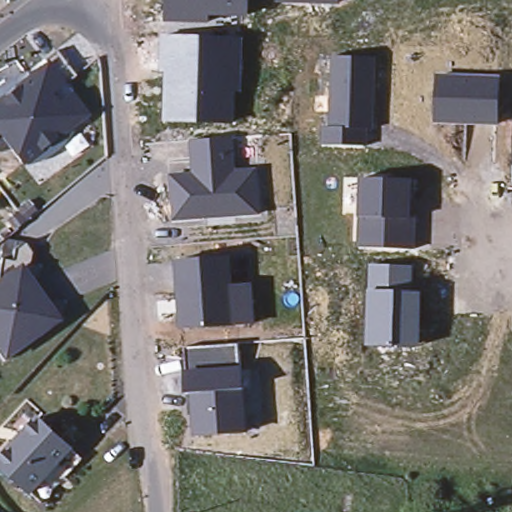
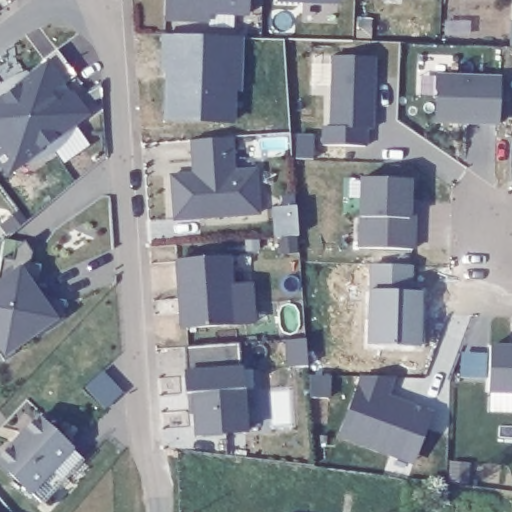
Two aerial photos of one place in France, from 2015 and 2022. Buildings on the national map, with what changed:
unchanged [(209,15),(208,24),(163,21),(165,0),(250,0),(249,17),(209,15)]
unchanged [(340,0),(340,5),(277,2),(277,0),(340,0)]
unchanged [(166,71),(158,71),(160,35),(244,38),(242,89),(242,94),(235,92),(234,124),(164,122),(166,71)]
unchanged [(19,74),(26,71),(29,75),(46,61),(43,58),(56,49),(75,75),(50,94),(55,102),(70,91),(87,114),(75,122),(72,130),(62,142),(54,150),(40,157),(23,162),(10,146),(7,149),(0,150),(0,85),(6,80),(19,74)]
unchanged [(322,126),(330,127),(332,56),(377,58),(374,130),(367,130),(367,147),(322,145),(322,126)]
unchanged [(435,121),(436,75),(500,76),(498,126),(435,121)]
unchanged [(170,174),(191,173),(188,141),(235,137),(237,169),(258,168),(261,215),(173,220),(170,174)]
unchanged [(357,245),(358,215),(360,179),(414,180),(412,219),(417,220),(415,250),(357,245)]
unchanged [(25,219),(14,227),(8,219),(18,210),(25,219)]
unchanged [(41,263),(37,285),(47,286),(45,295),(67,298),(63,317),(38,335),(37,335),(40,321),(32,320),(30,333),(20,332),(17,351),(5,360),(0,352),(0,334),(1,328),(0,328),(0,266),(2,257),(12,258),(14,248),(18,245),(25,238),(30,246),(32,251),(30,261),(41,263)]
unchanged [(175,262),(230,257),(233,280),(233,285),(253,284),(256,323),(232,324),(180,327),(175,262)]
unchanged [(369,291),(370,265),(414,266),(413,292),(422,293),(421,347),(367,346),(369,291)]
new [(487,394),(487,378),(460,377),(461,353),(488,353),(489,345),(510,346),(510,338),(512,339),(512,395),(487,394)]
unchanged [(193,435),(192,392),(185,393),(183,370),(187,370),(185,347),(237,345),(240,366),(243,366),(245,390),(248,431),(193,435)]
new [(390,453),(340,435),(360,376),(390,377),(383,396),(407,405),(429,412),(415,453),(412,460),(390,453)]
demolished [(135,406),(129,415),(120,409),(127,400),(135,406)]
unchanged [(0,459),(40,416),(73,448),(32,491),(0,462),(0,459)]

